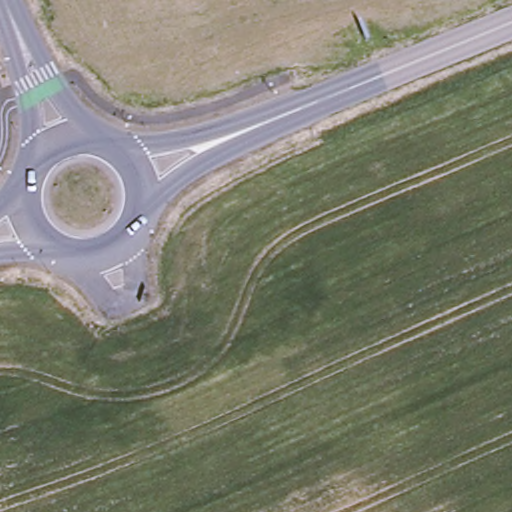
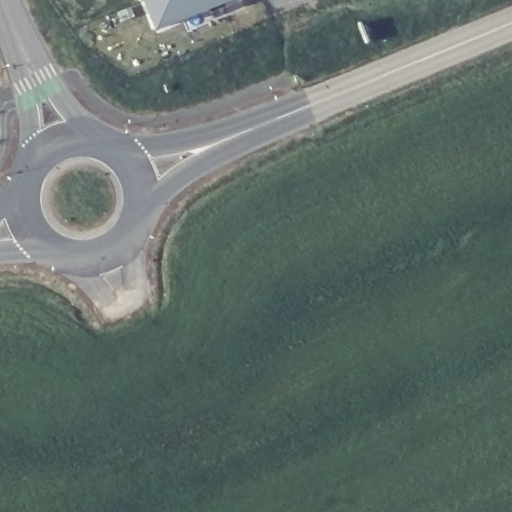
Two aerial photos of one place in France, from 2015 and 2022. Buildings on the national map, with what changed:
new [(159,34),(145,0),(243,0),(159,34)]

